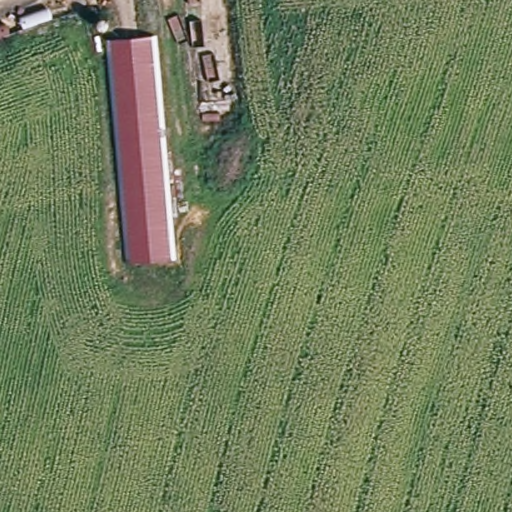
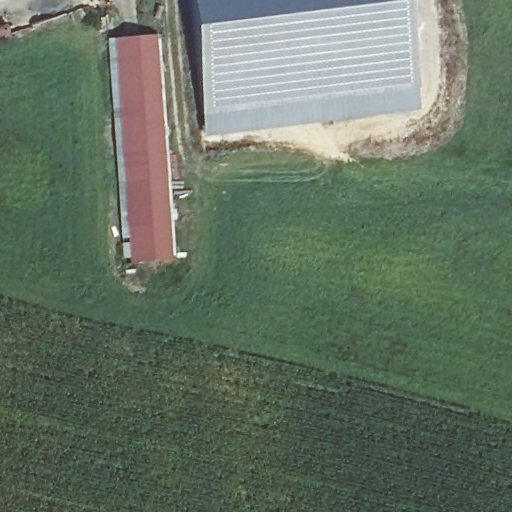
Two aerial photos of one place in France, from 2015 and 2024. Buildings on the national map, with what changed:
new [(203,118),(191,0),(402,0),(413,90),(203,118)]
unchanged [(167,184),(169,213),(173,260),(166,261),(126,264),(119,184),(107,39),(154,35),(167,184)]

